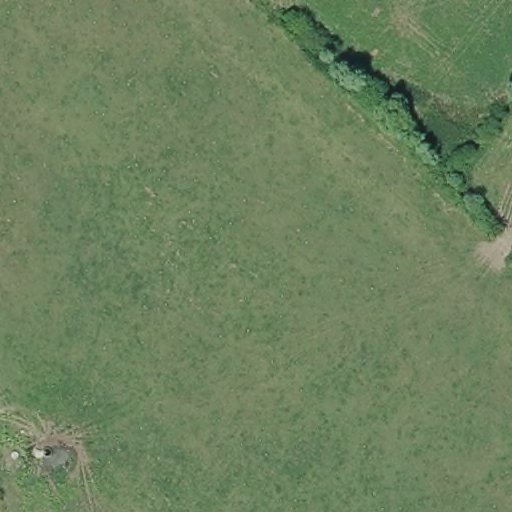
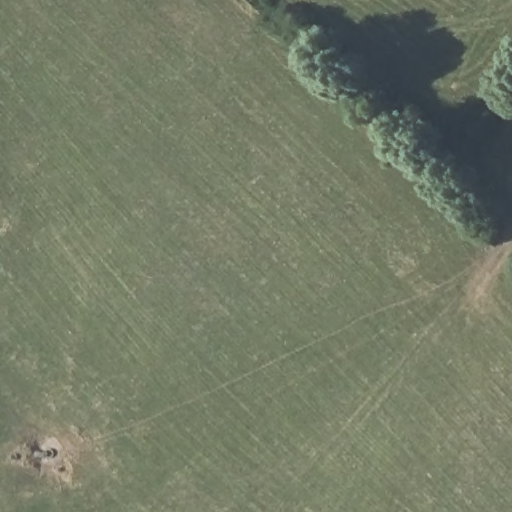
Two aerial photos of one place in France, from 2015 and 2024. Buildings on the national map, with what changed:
[]

